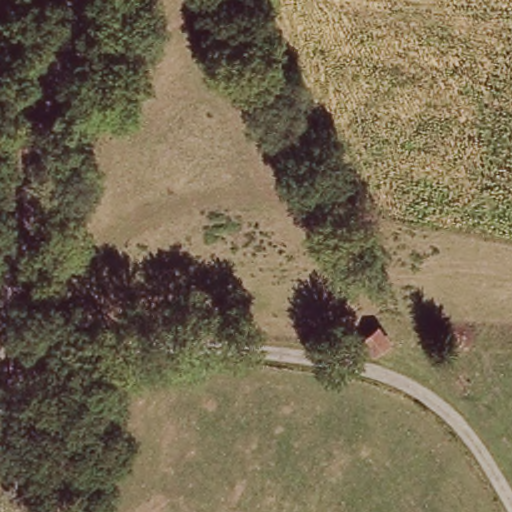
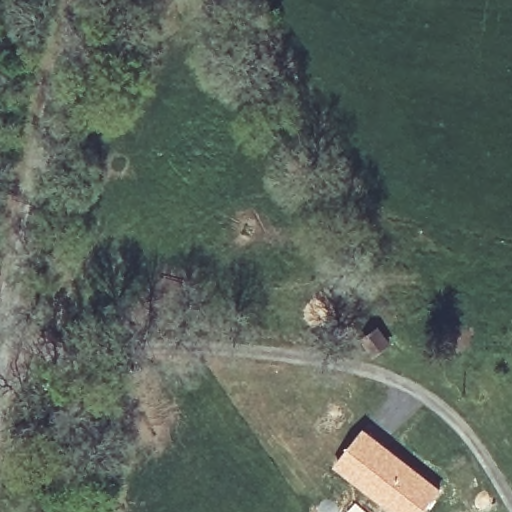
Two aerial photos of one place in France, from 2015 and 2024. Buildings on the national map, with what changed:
unchanged [(371,358),(360,341),(376,330),(387,348),(371,358)]
new [(426,512),(394,512),(335,466),(366,428),(444,491),(426,512)]

